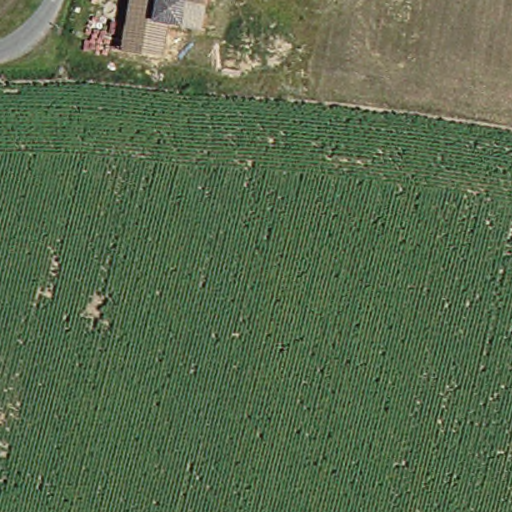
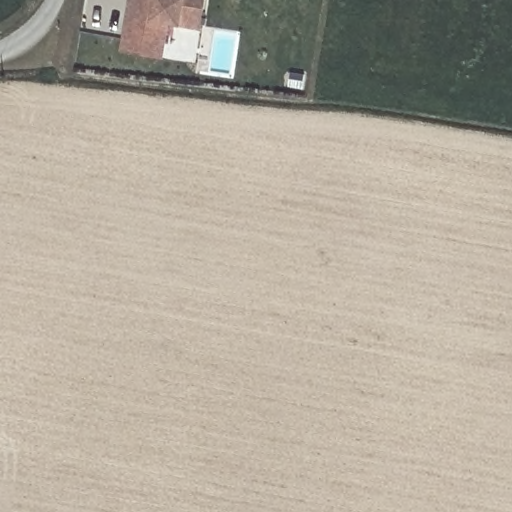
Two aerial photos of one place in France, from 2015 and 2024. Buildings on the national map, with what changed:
unchanged [(170,26),(164,60),(120,53),(128,0),(206,0),(201,30),(170,26)]

